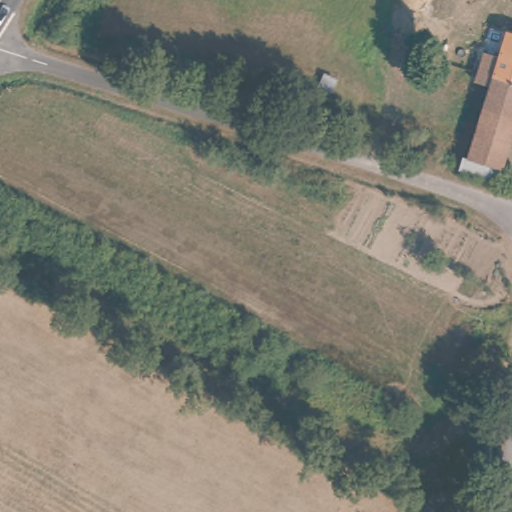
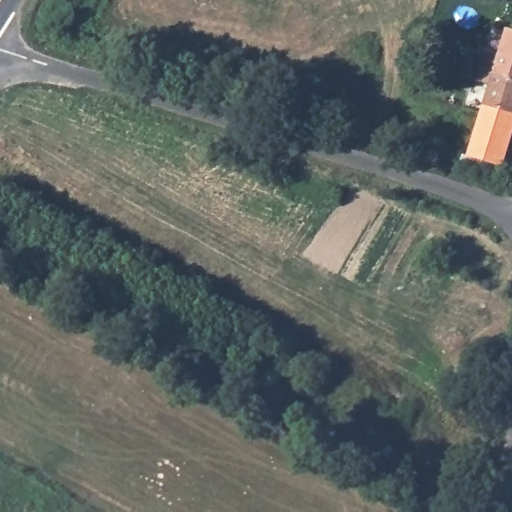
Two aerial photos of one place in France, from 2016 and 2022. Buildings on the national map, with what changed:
unchanged [(512,133),(478,123),(489,81),(477,77),(486,49),(500,52),(507,28),(512,29),(512,133)]
unchanged [(512,147),(501,183),(465,173),(478,123),(512,133),(512,147)]

